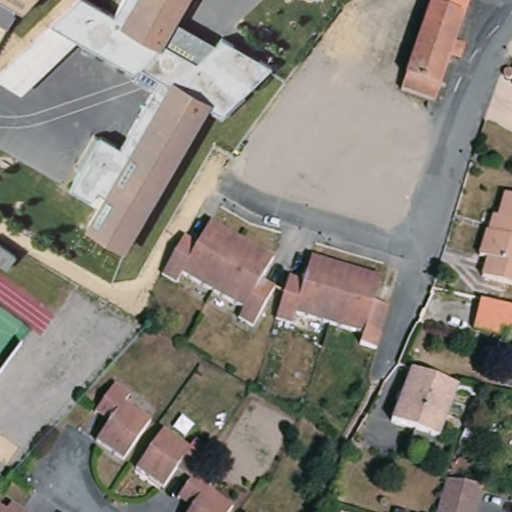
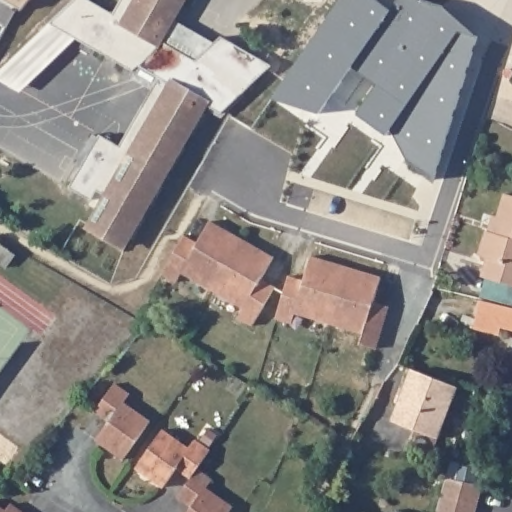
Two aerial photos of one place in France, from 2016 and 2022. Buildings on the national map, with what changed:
unchanged [(0,17),(0,0),(14,0),(28,8),(13,25),(0,17)]
unchanged [(34,0),(28,8),(14,0),(34,0)]
unchanged [(215,42),(222,36),(270,63),(241,90),(244,93),(222,117),(210,111),(210,103),(207,102),(126,245),(88,223),(105,194),(96,189),(91,199),(69,188),(98,133),(121,145),(151,86),(131,76),(135,68),(51,21),(74,0),(92,0),(113,11),(120,0),(185,0),(174,19),(215,42)]
new [(398,0),(421,0),(444,8),(478,35),(434,179),(409,163),(391,126),(387,134),(357,114),(377,85),(351,66),(318,114),(270,99),(340,0),(375,0),(390,11),(398,0)]
demolished [(444,0),(469,0),(434,102),(399,91),(426,5),(440,10),(444,0)]
new [(79,37),(21,94),(0,81),(0,71),(51,21),(79,37)]
demolished [(302,173),(324,101),(425,131),(403,204),(304,173),(302,173)]
unchanged [(512,286),(486,279),(491,260),(483,258),(488,234),(490,234),(495,218),(501,219),(507,198),(512,199),(512,286)]
unchanged [(190,234),(192,229),(205,238),(219,215),(250,235),(219,285),(189,266),(183,275),(170,267),(176,255),(190,234)]
unchanged [(279,289),(258,322),(244,314),(250,304),(219,285),(250,235),(282,255),(268,277),(281,284),(279,289)]
unchanged [(8,258),(0,267),(0,251),(8,258)]
unchanged [(349,269),(329,324),(296,311),(292,322),(276,315),(289,279),(291,274),(306,280),(315,256),(349,269)]
unchanged [(374,305),(386,309),(384,314),(374,352),(358,346),(362,335),(329,324),(349,269),(383,281),(374,305)]
unchanged [(500,338),(475,333),(481,302),(512,309),(512,333),(502,331),(500,338)]
unchanged [(438,438),(392,422),(411,371),(457,386),(438,438)]
unchanged [(132,397),(126,404),(151,421),(124,461),(97,442),(112,419),(98,409),(115,385),(132,397)]
unchanged [(189,480),(175,471),(159,494),(133,475),(160,434),(186,454),(193,447),(206,456),(195,474),(189,480)]
unchanged [(340,467),(342,464),(353,468),(353,469),(335,512),(323,512),(321,511),(340,467)]
unchanged [(208,484),(204,492),(230,509),(228,512),(188,512),(191,508),(177,499),(189,480),(195,474),(208,484)]
unchanged [(484,488),(477,512),(441,512),(449,481),(484,488)]
unchanged [(9,508),(16,512),(4,512),(9,508)]
unchanged [(3,512),(0,512),(0,510),(3,512)]

